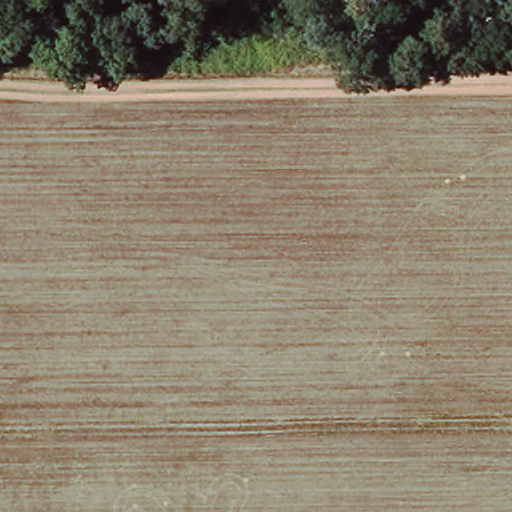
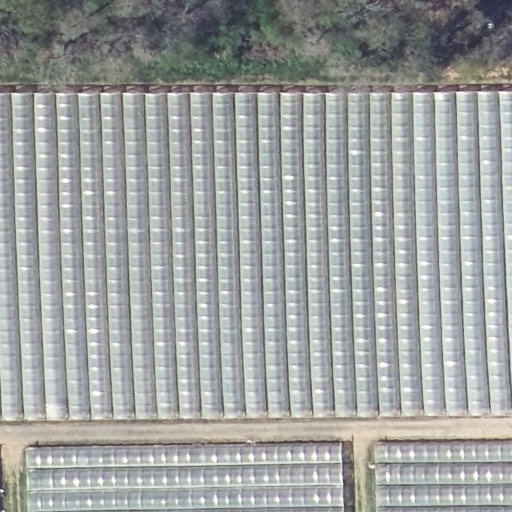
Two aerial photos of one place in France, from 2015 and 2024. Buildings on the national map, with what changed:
new [(113,90),(512,90),(512,413),(197,419),(45,420),(0,419),(0,91),(113,90)]
demolished [(512,414),(136,422),(83,102),(512,97),(512,414)]
new [(512,512),(376,512),(374,443),(512,441),(512,512)]
new [(107,447),(246,443),(342,442),(345,512),(27,512),(25,448),(107,447)]

